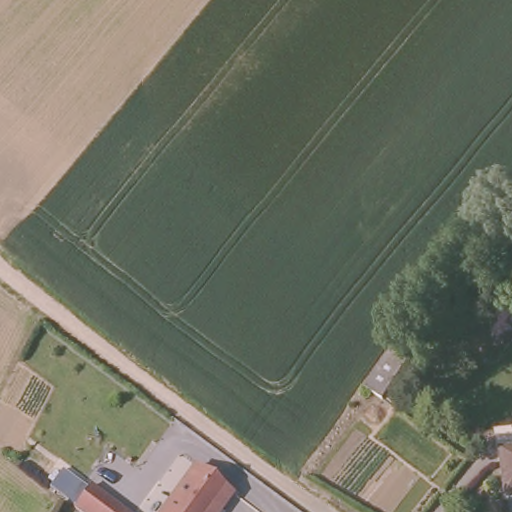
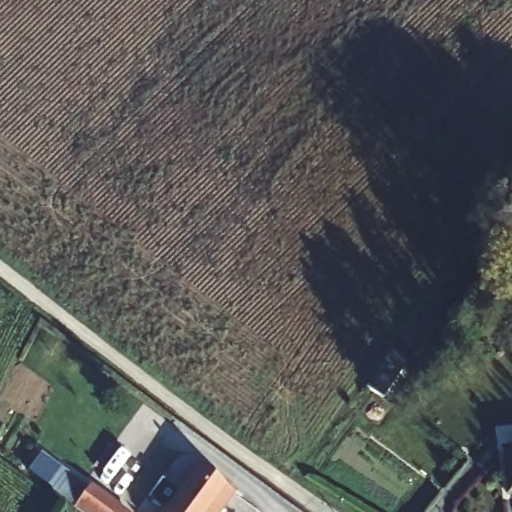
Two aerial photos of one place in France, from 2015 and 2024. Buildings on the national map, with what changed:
unchanged [(512,497),(505,497),(502,452),(512,451),(512,497)]
unchanged [(75,505),(50,486),(64,467),(92,487),(130,512),(84,512),(75,505)]
unchanged [(222,512),(160,512),(194,467),(234,496),(222,512)]

